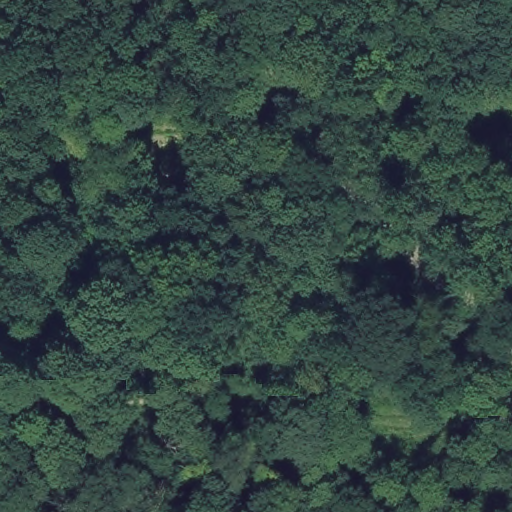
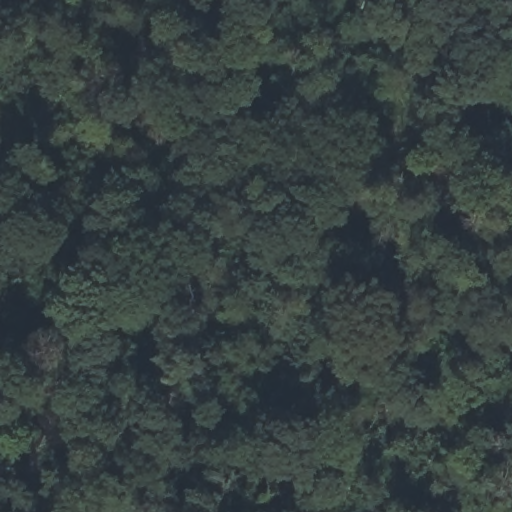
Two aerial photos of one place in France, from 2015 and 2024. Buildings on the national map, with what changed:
[]

